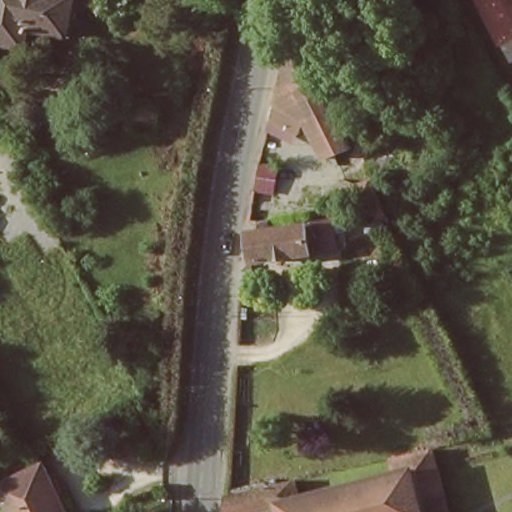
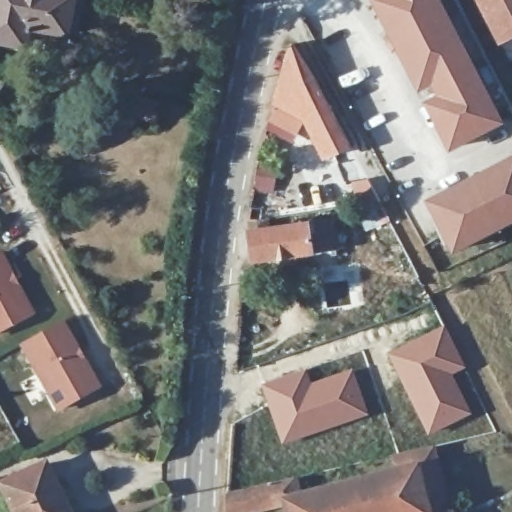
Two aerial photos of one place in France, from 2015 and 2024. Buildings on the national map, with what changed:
unchanged [(27,26),(25,45),(0,42),(0,0),(69,0),(64,31),(27,26)]
new [(448,151),(425,103),(437,96),(431,84),(418,92),(371,0),(439,0),(502,124),(448,151)]
demolished [(452,44),(431,0),(460,0),(476,33),(452,44)]
unchanged [(510,61),(501,44),(499,46),(475,0),(512,0),(512,60),(510,61)]
unchanged [(324,155),(304,118),(296,131),(270,115),(275,100),(277,90),(283,73),(290,48),(292,42),(293,41),(297,46),(312,71),(315,78),(328,100),(333,110),(350,141),(324,155)]
unchanged [(137,114),(139,98),(160,101),(157,118),(137,114)]
new [(512,158),(512,223),(453,253),(426,202),(512,158)]
unchanged [(343,185),(363,174),(402,246),(385,257),(343,185)]
unchanged [(270,220),(272,231),(332,222),(337,250),(254,263),(250,234),(260,233),(258,223),(270,220)]
new [(0,335),(0,250),(35,317),(0,335)]
new [(60,411),(24,347),(63,324),(100,389),(60,411)]
new [(444,324),(466,369),(452,376),(471,414),(426,436),(385,354),(444,324)]
new [(304,367),(310,383),(351,369),(368,416),(280,447),(258,384),(304,367)]
unchanged [(227,497),(275,486),(286,483),(295,481),(300,499),(397,476),(393,459),(415,454),(432,449),(449,512),(284,512),(283,509),(266,512),(226,512),(227,497)]
unchanged [(52,478),(58,474),(76,512),(15,512),(2,484),(45,462),(52,478)]

